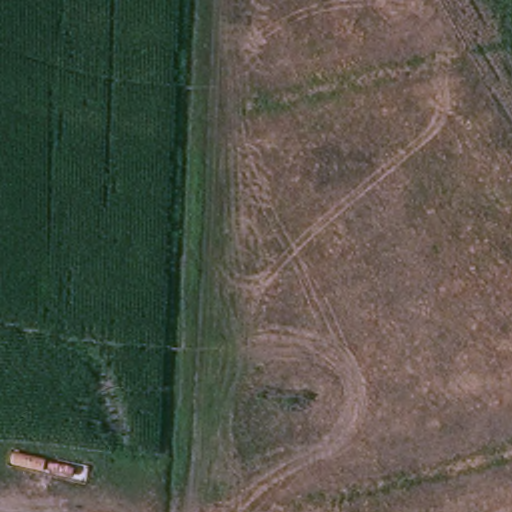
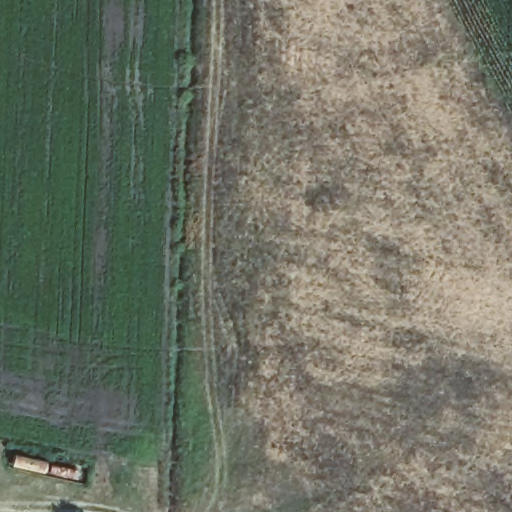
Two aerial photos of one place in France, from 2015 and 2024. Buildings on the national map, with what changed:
[]

